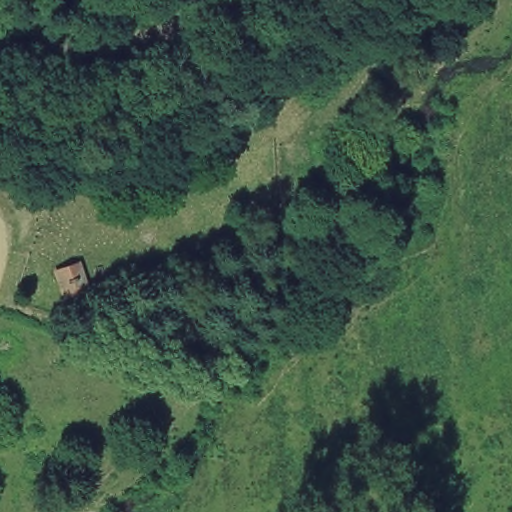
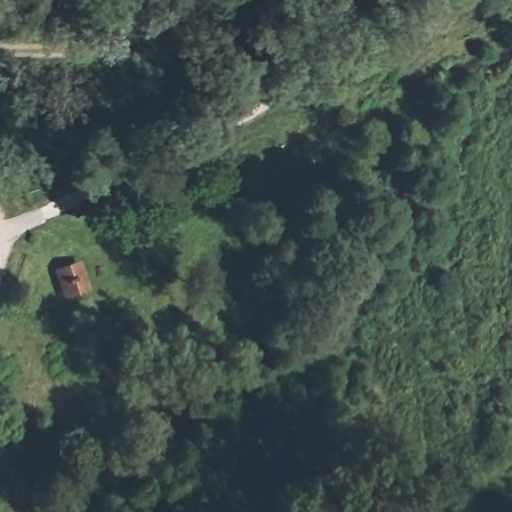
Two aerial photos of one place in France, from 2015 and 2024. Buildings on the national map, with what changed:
unchanged [(100,295),(66,305),(57,270),(88,261),(100,295)]

